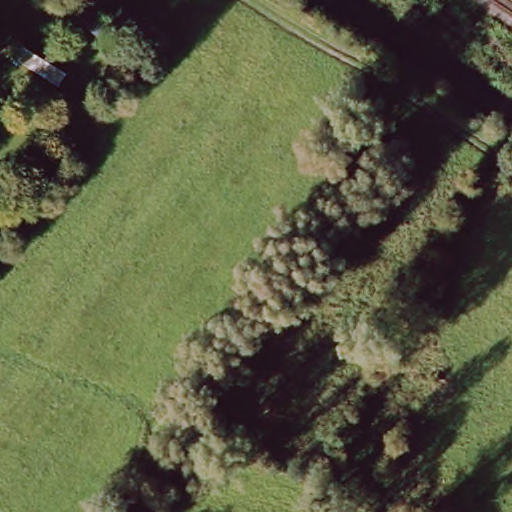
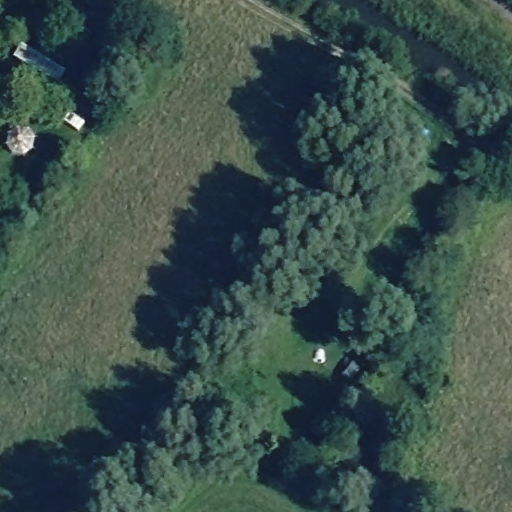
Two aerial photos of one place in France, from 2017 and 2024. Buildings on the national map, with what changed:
unchanged [(70,77),(59,94),(13,62),(24,46),(70,77)]

